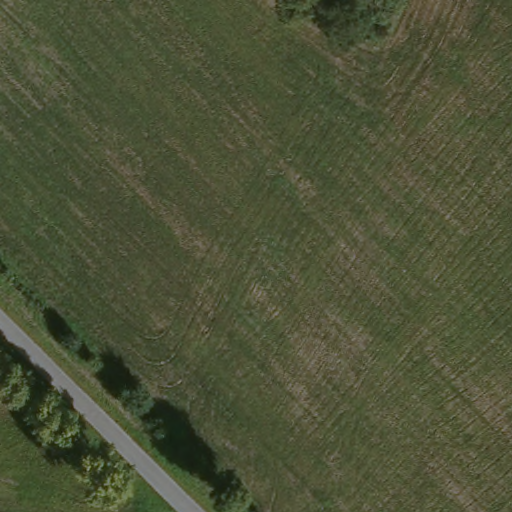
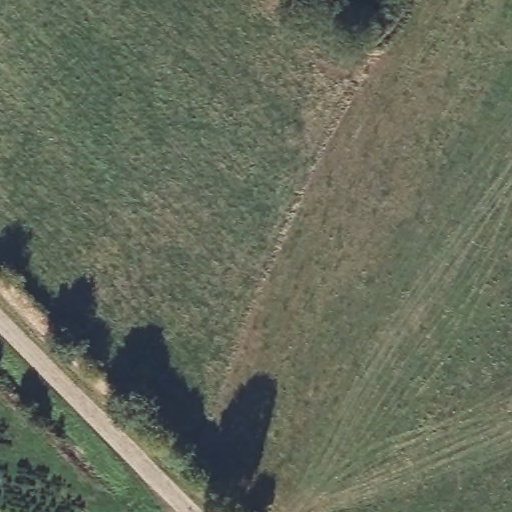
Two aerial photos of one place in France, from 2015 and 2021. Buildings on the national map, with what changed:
[]

